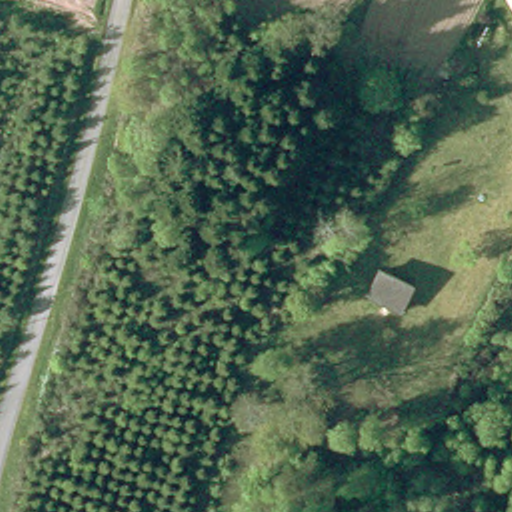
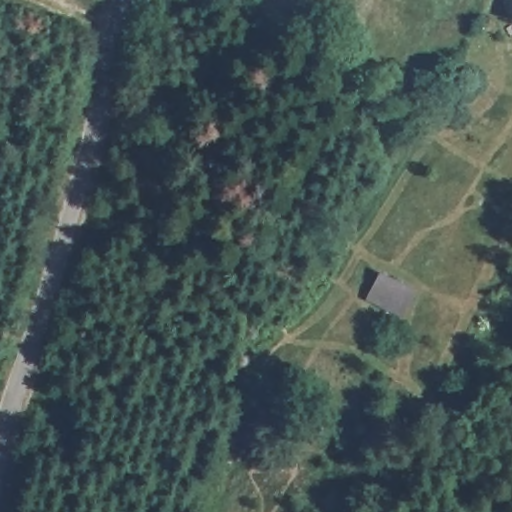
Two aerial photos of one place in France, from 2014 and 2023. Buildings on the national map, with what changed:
unchanged [(374,306),(378,298),(385,277),(419,292),(410,313),(406,321),(374,306)]

